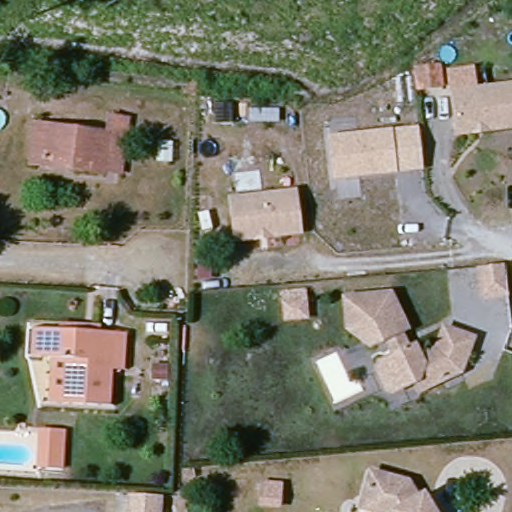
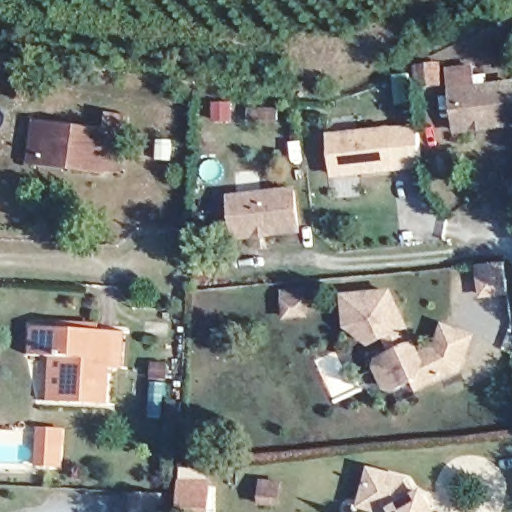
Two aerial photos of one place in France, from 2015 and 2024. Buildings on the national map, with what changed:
unchanged [(512,122),(455,129),(451,89),(512,81),(512,122)]
unchanged [(29,124),(40,125),(101,130),(102,111),(120,114),(115,167),(99,165),(99,171),(68,168),(25,165),(29,124)]
unchanged [(343,135),(401,128),(406,166),(348,173),(343,135)]
unchanged [(187,150),(184,172),(168,170),(170,148),(187,150)]
unchanged [(236,240),(234,226),(231,200),(294,192),(299,233),(236,240)]
unchanged [(473,296),(473,290),(472,268),(503,265),(504,287),(504,294),(473,296)]
unchanged [(300,294),(300,298),(301,309),(281,311),(280,300),(280,296),(300,294)]
unchanged [(350,302),(395,297),(396,303),(406,329),(397,333),(404,350),(413,351),(417,360),(442,353),(449,334),(473,345),(461,376),(412,392),(409,383),(383,392),(374,369),(380,358),(395,353),(389,335),(367,344),(350,334),(349,309),(350,302)]
unchanged [(56,404),(60,361),(36,358),(28,359),(30,326),(39,326),(76,330),(75,335),(95,337),(92,364),(109,367),(106,407),(56,404)]
unchanged [(92,364),(95,337),(95,330),(125,332),(121,367),(109,367),(92,364)]
unchanged [(53,435),(51,457),(33,456),(33,434),(53,435)]
unchanged [(367,504),(371,476),(405,479),(419,499),(423,496),(435,512),(365,512),(367,504)]
new [(179,480),(214,481),(214,512),(179,512),(179,480)]
unchanged [(136,493),(154,494),(153,512),(125,512),(126,492),(136,493)]

